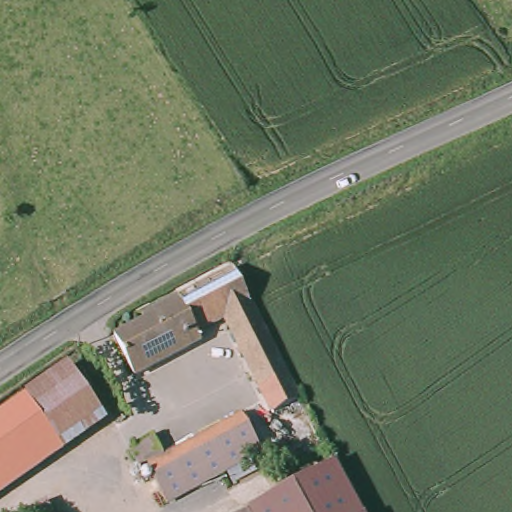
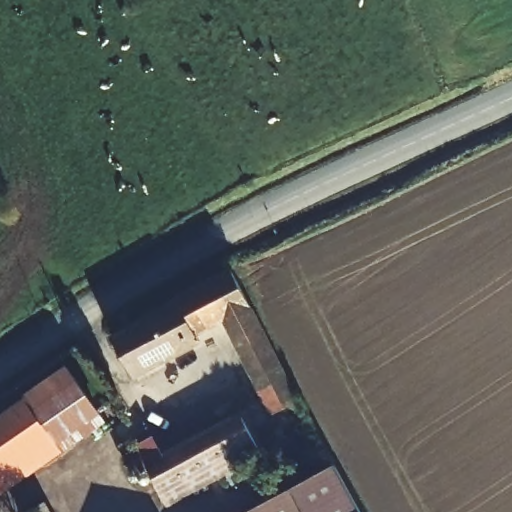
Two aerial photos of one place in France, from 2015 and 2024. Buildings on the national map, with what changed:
unchanged [(262,388),(223,319),(188,337),(197,353),(138,385),(118,346),(157,325),(151,314),(232,270),(283,365),(289,375),(300,397),(274,410),(262,388)]
unchanged [(0,419),(72,381),(102,437),(5,486),(0,477),(0,419)]
unchanged [(198,448),(247,423),(249,426),(266,457),(215,484),(198,448)]
unchanged [(215,484),(166,510),(132,452),(141,447),(149,443),(162,466),(198,448),(215,484)]
unchanged [(354,512),(251,512),(332,470),(354,512)]
unchanged [(0,489),(0,477),(5,486),(0,489)]
unchanged [(40,512),(21,512),(37,504),(40,512)]

